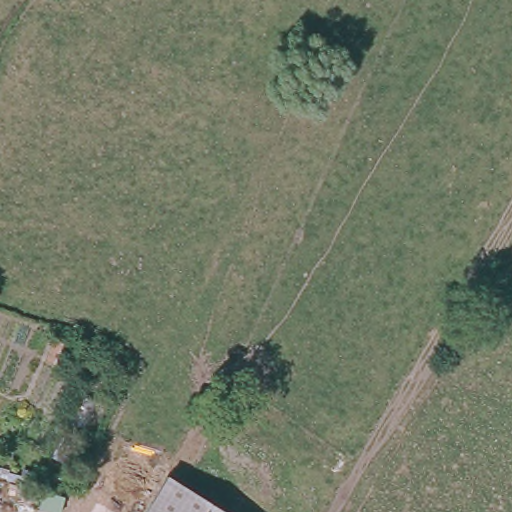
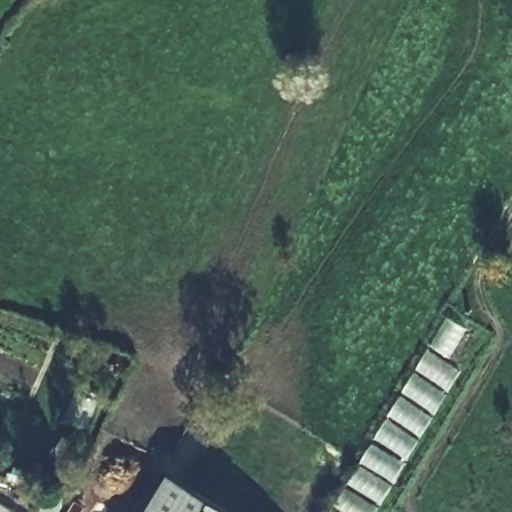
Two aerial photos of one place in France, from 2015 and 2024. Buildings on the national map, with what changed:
new [(491,343),(389,512),(329,512),(446,319),(491,343)]
unchanged [(232,512),(144,512),(167,473),(232,512)]

